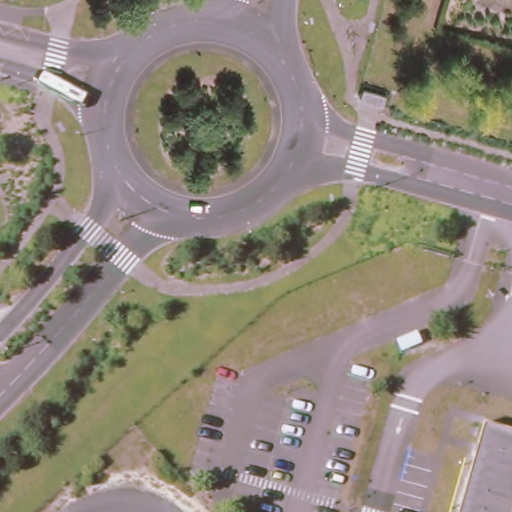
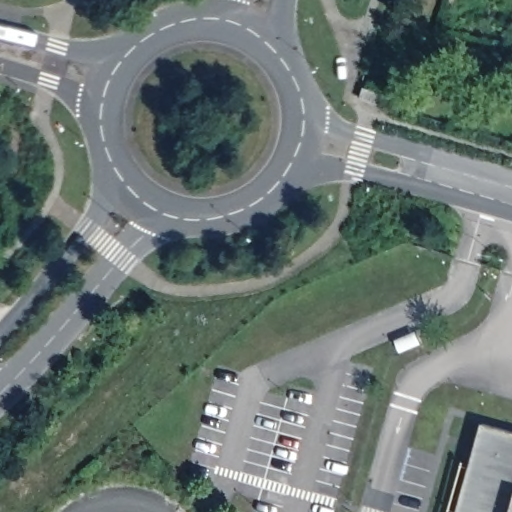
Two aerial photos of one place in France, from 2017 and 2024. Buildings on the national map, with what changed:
unchanged [(416,330),(421,342),(400,351),(395,340),(416,330)]
unchanged [(512,426),(512,512),(456,512),(482,417),(512,426)]

